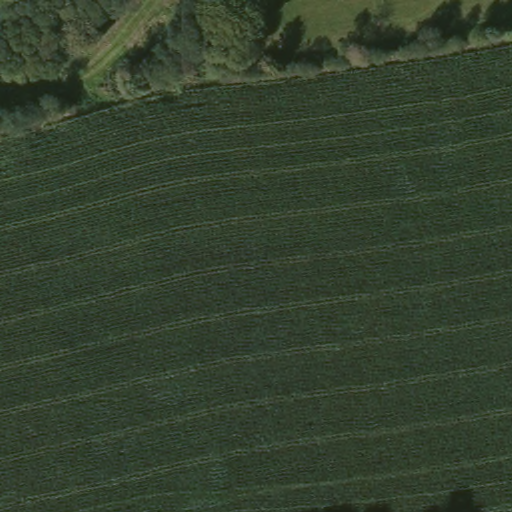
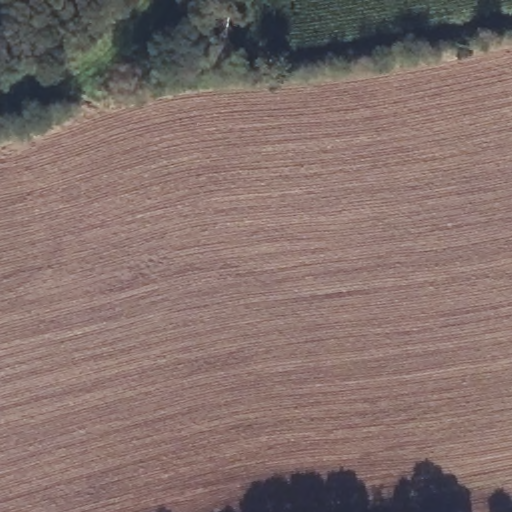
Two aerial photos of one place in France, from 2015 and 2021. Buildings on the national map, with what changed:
[]

